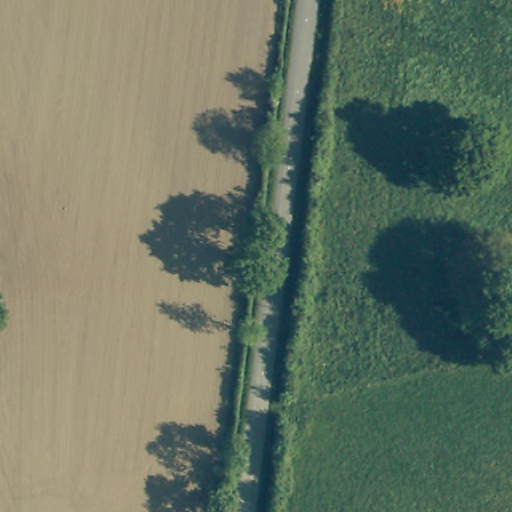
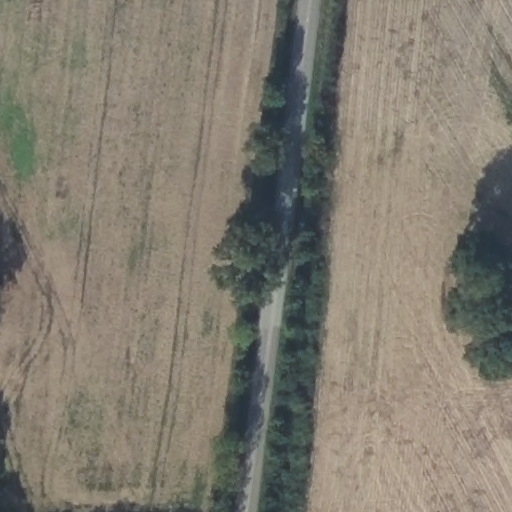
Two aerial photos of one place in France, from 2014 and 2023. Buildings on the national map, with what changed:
[]

